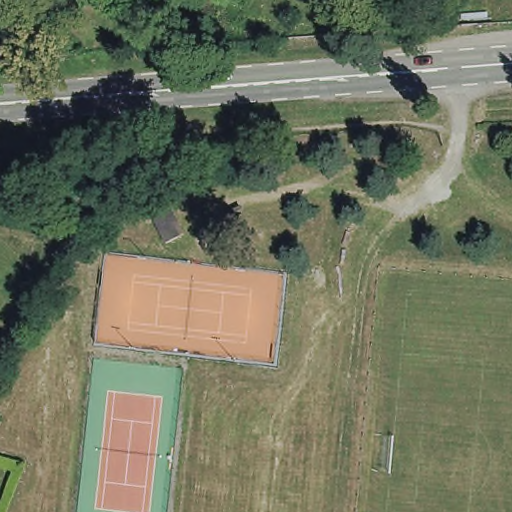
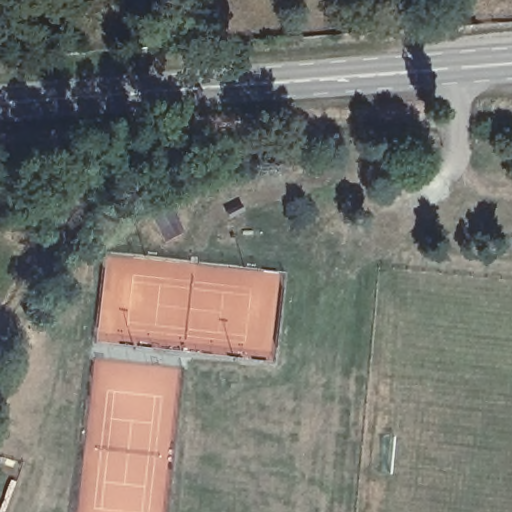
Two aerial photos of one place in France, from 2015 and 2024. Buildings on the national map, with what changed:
unchanged [(167,242),(163,235),(152,211),(168,203),(180,226),(184,234),(167,242)]

